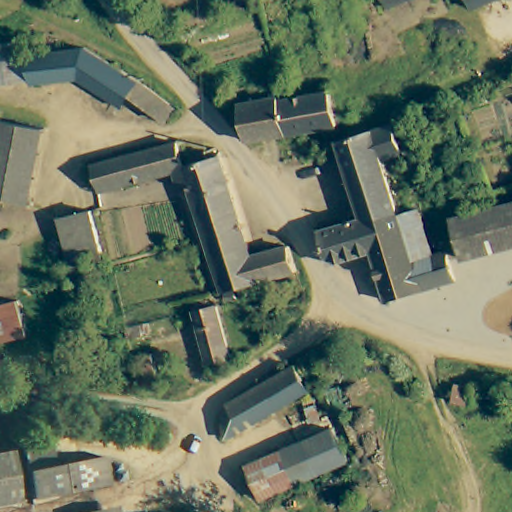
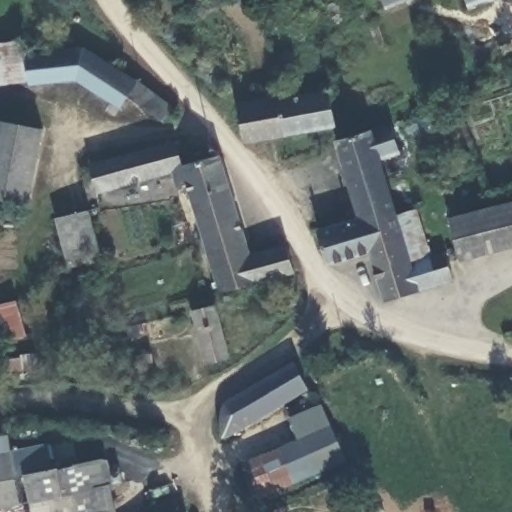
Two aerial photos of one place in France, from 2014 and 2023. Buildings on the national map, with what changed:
unchanged [(366,0),(418,0),(375,19),(366,0)]
unchanged [(466,0),(504,0),(469,12),(466,0)]
unchanged [(22,52),(22,68),(24,77),(0,80),(0,39),(20,37),(22,52)]
unchanged [(127,73),(158,95),(171,106),(160,116),(125,88),(115,100),(73,74),(24,77),(22,68),(22,52),(34,49),(79,44),(127,73)]
unchanged [(332,93),(337,123),(287,131),(282,102),(332,93)]
unchanged [(287,131),(247,137),(241,101),(280,94),(282,102),(287,131)]
unchanged [(1,121),(0,126),(0,121),(1,121)]
unchanged [(44,128),(29,204),(0,200),(0,126),(1,121),(44,128)]
unchanged [(447,252),(455,280),(385,299),(369,252),(330,264),(321,232),(351,222),(349,212),(361,207),(342,148),(341,144),(392,128),(402,153),(383,161),(401,216),(419,211),(433,256),(447,252)]
unchanged [(106,189),(103,189),(96,164),(179,142),(187,165),(106,189)]
unchanged [(220,154),(251,257),(288,248),(297,271),(272,278),(248,284),(222,291),(187,165),(220,154)]
unchanged [(450,218),(512,201),(512,246),(462,258),(450,218)]
unchanged [(72,268),(56,220),(84,212),(89,210),(104,258),(93,261),(72,268)]
unchanged [(23,335),(0,342),(0,304),(13,299),(23,335)]
unchanged [(293,302),(295,307),(297,315),(286,315),(282,312),(280,303),(287,300),(293,302)]
unchanged [(230,357),(210,362),(198,313),(218,307),(230,357)]
unchanged [(158,375),(143,378),(138,355),(154,353),(158,375)]
unchanged [(301,372),(309,388),(228,439),(224,421),(296,366),(301,372)]
unchanged [(320,469),(281,490),(261,501),(245,467),(304,437),(320,469)]
unchanged [(56,464),(110,455),(115,482),(34,498),(23,446),(50,442),(56,464)]
unchanged [(14,451),(22,501),(0,506),(0,454),(14,451)]
unchanged [(120,512),(96,512),(119,508),(120,512)]
unchanged [(38,512),(50,509),(51,512),(38,512)]

